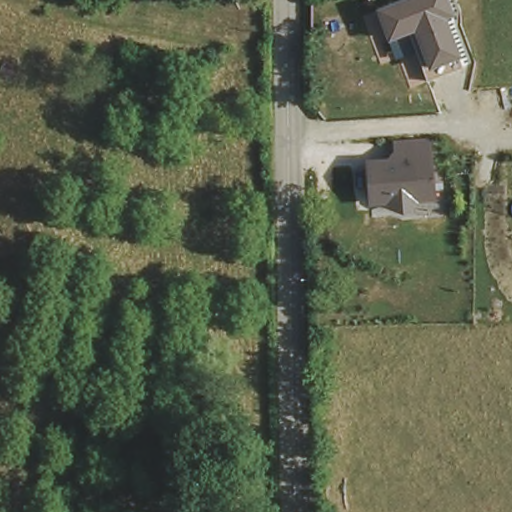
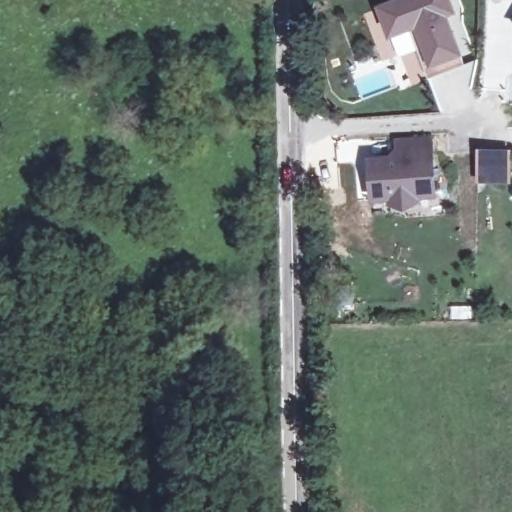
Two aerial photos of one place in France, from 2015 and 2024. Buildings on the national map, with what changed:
unchanged [(394,37),(387,40),(375,8),(395,0),(449,0),(455,15),(447,19),(465,68),(431,81),(421,51),(403,57),(394,37)]
unchanged [(371,157),(393,156),(392,144),(436,142),(439,202),(425,202),(404,214),(389,208),(376,207),(371,157)]
new [(512,153),(511,183),(479,182),(481,152),(512,153)]

